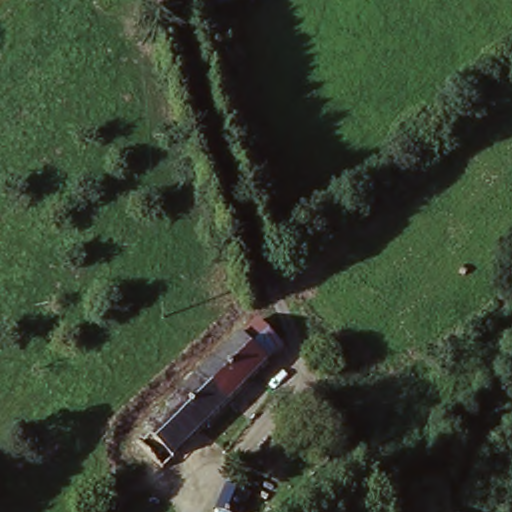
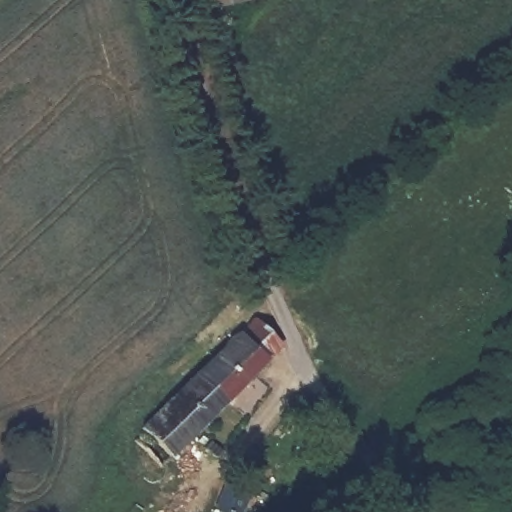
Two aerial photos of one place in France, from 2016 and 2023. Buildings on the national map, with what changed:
unchanged [(206,15),(195,17),(191,0),(260,0),(261,4),(256,5),(263,39),(213,50),(206,15)]
unchanged [(161,475),(137,451),(149,439),(145,433),(252,326),(276,349),(279,354),(161,475)]
unchanged [(258,497),(272,504),(267,512),(226,512),(237,491),(255,500),(258,497)]

